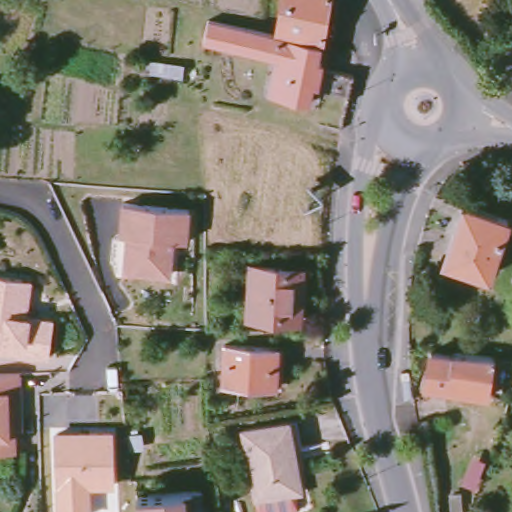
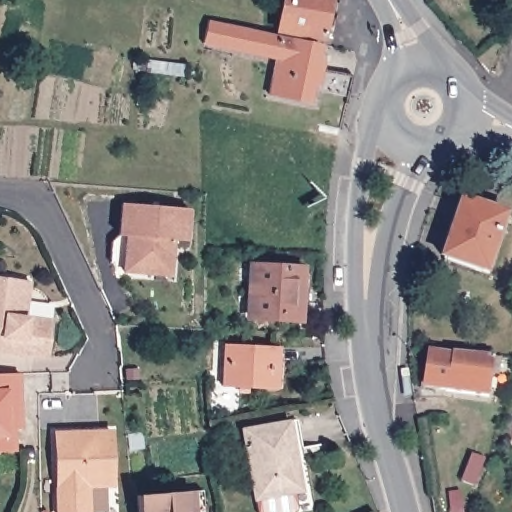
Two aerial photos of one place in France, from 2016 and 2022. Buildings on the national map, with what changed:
unchanged [(276,30),(282,0),(329,0),(321,40),(276,30)]
unchanged [(316,63),(322,64),(320,70),(352,76),(352,78),(348,98),(315,92),(317,87),(312,86),(309,104),(268,95),(274,60),(202,44),(207,22),(260,33),(320,46),(316,63)]
unchanged [(444,260),(463,202),(505,217),(487,274),(444,260)]
unchanged [(120,236),(122,204),(189,210),(186,242),(172,241),(170,271),(165,276),(123,272),(125,247),(126,237),(120,236)]
unchanged [(247,315),(252,266),(302,270),(298,320),(247,315)]
unchanged [(21,280),(29,281),(24,317),(52,321),(47,357),(0,351),(0,277),(21,280)]
unchanged [(227,387),(230,345),(278,348),(277,365),(280,365),(280,376),(276,376),(275,390),(227,387)]
unchanged [(494,358),(488,397),(419,388),(421,368),(426,369),(428,353),(451,356),(452,352),(494,358)]
unchanged [(14,457),(0,457),(0,379),(18,378),(20,425),(20,433),(13,433),(14,457)]
unchanged [(286,460),(292,462),(297,493),(255,500),(242,429),(289,422),(297,422),(302,448),(294,450),(285,452),(286,460)]
unchanged [(109,431),(111,485),(87,486),(88,512),(57,512),(54,433),(109,431)]
unchanged [(206,491),(208,512),(143,512),(142,495),(206,491)]

